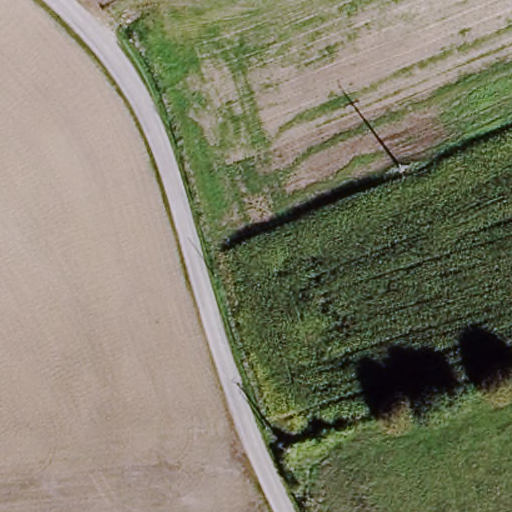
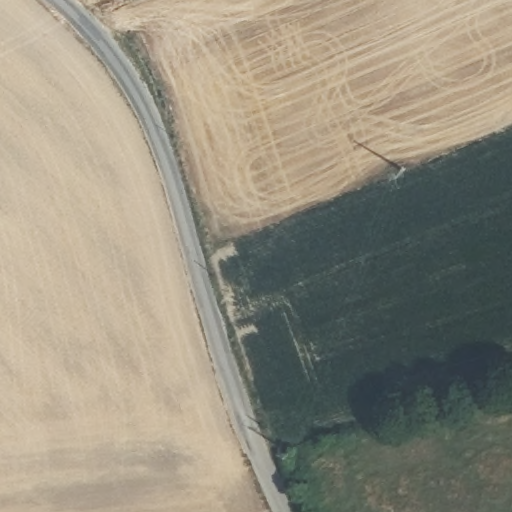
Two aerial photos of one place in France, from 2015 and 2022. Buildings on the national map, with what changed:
[]

